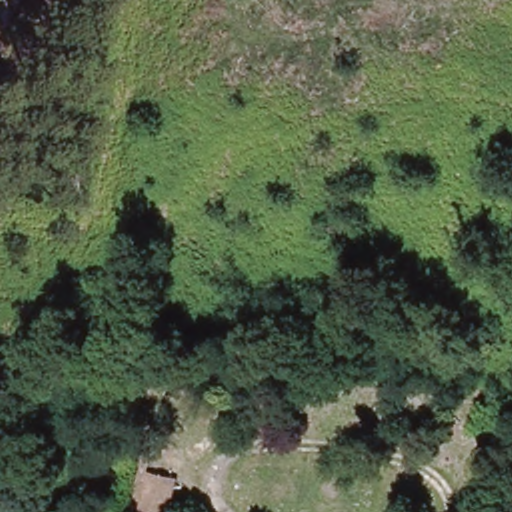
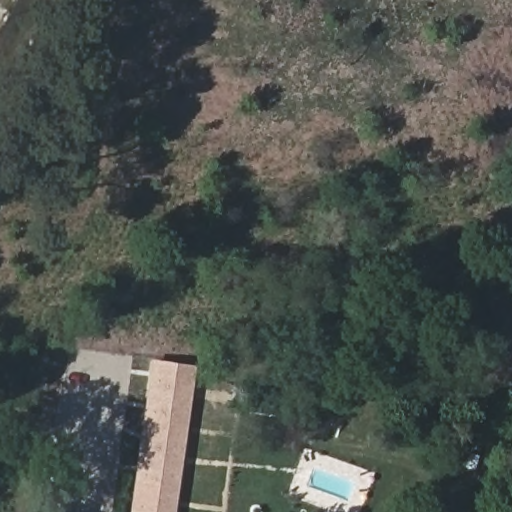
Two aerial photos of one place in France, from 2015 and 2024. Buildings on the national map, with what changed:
new [(196,364),(176,512),(133,512),(155,357),(196,364)]
demolished [(179,477),(171,512),(166,512),(145,507),(152,471),(179,477)]

